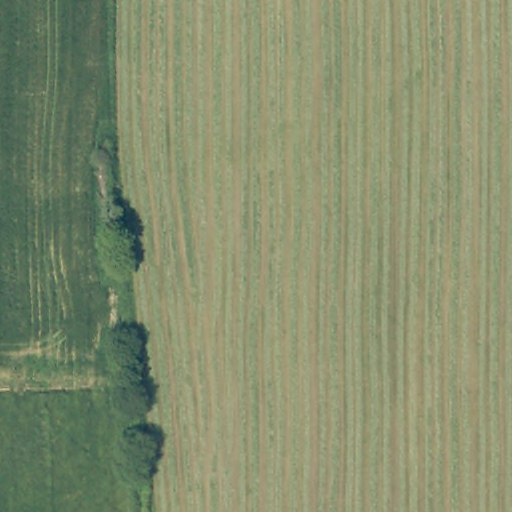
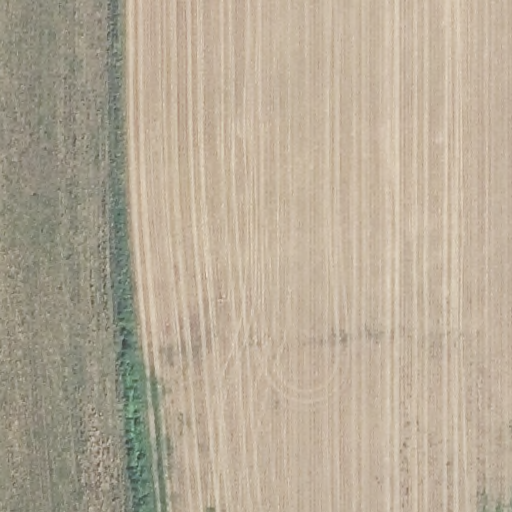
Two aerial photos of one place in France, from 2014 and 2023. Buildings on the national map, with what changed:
[]

